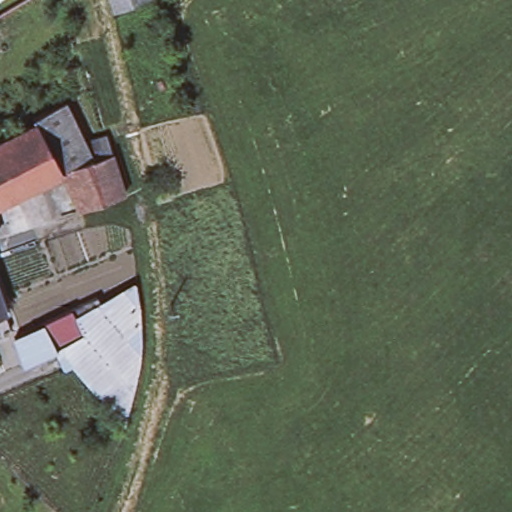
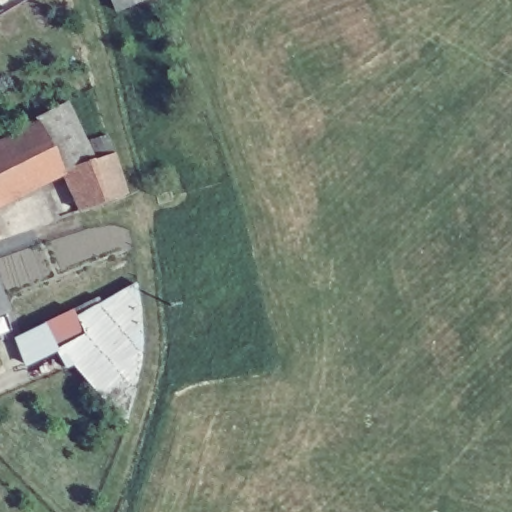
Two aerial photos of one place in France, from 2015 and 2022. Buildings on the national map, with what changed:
unchanged [(116,10),(112,0),(139,0),(116,10)]
unchanged [(25,116),(58,100),(79,144),(99,135),(105,153),(54,172),(28,124),(25,116)]
unchanged [(28,124),(54,172),(105,153),(123,192),(71,210),(55,175),(0,202),(0,137),(28,124)]
unchanged [(103,302),(138,281),(140,307),(142,338),(142,348),(139,366),(127,420),(128,423),(127,428),(75,365),(64,366),(58,350),(47,322),(74,309),(100,296),(103,302)]
unchanged [(22,333),(34,327),(44,322),(56,350),(54,351),(25,364),(15,336),(22,333)]

